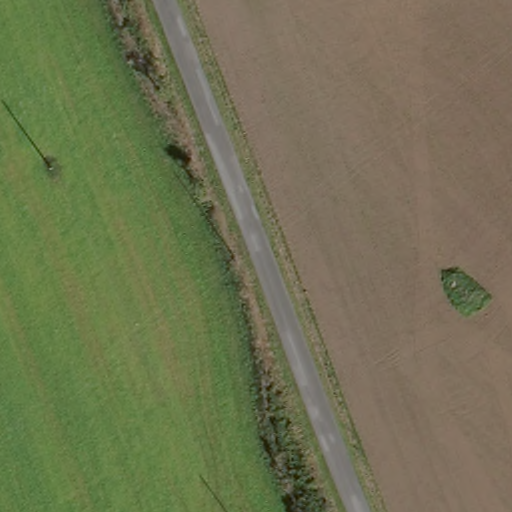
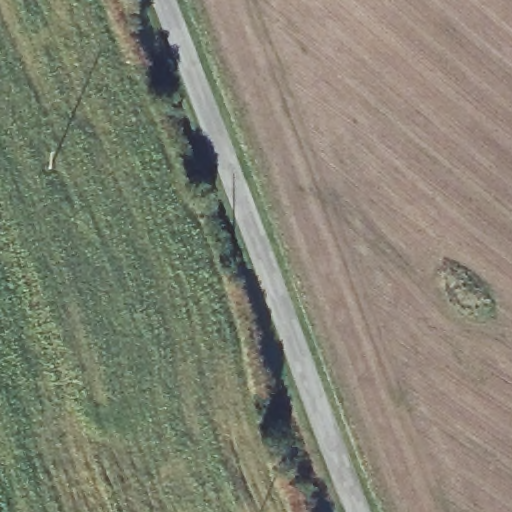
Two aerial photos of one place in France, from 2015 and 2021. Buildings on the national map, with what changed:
[]

